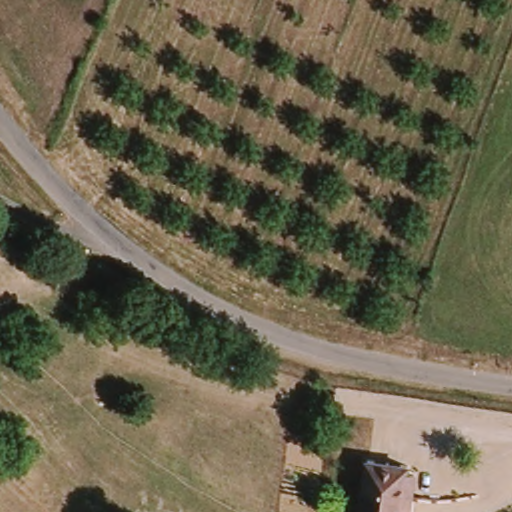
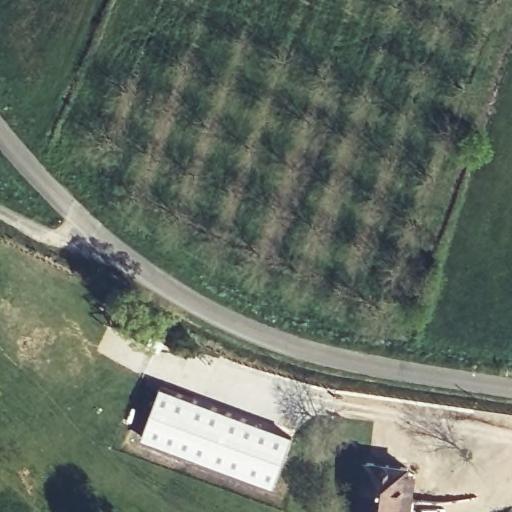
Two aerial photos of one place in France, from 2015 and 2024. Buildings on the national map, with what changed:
unchanged [(1,251),(0,252),(0,250),(1,251)]
unchanged [(180,331),(175,341),(158,331),(163,321),(180,331)]
new [(272,489),(140,441),(160,387),(292,436),(272,489)]
unchanged [(365,463),(405,470),(405,475),(412,477),(407,512),(356,512),(365,463)]

